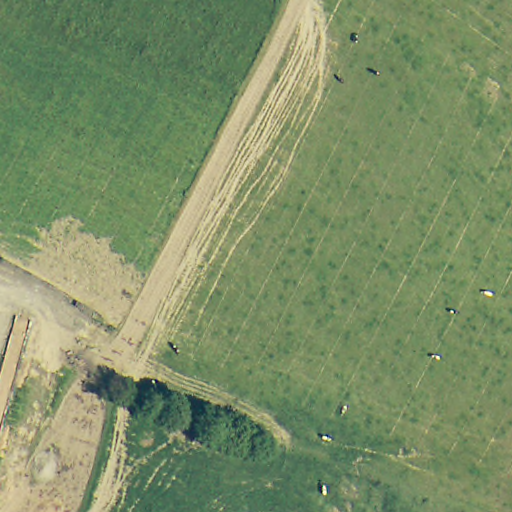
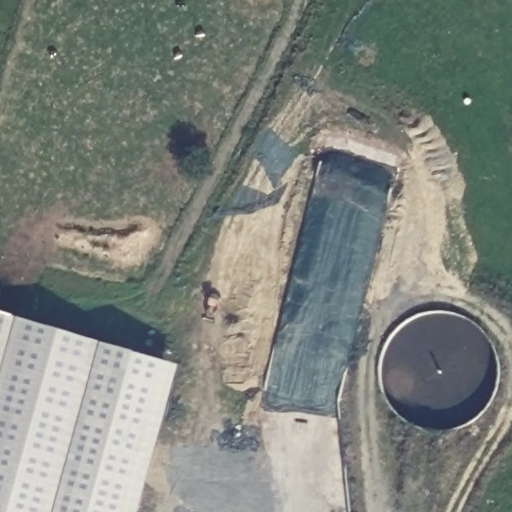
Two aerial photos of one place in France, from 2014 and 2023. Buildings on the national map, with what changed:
new [(32,323),(0,438),(0,313),(32,323)]
new [(179,366),(139,512),(0,512),(0,438),(32,323),(179,366)]

